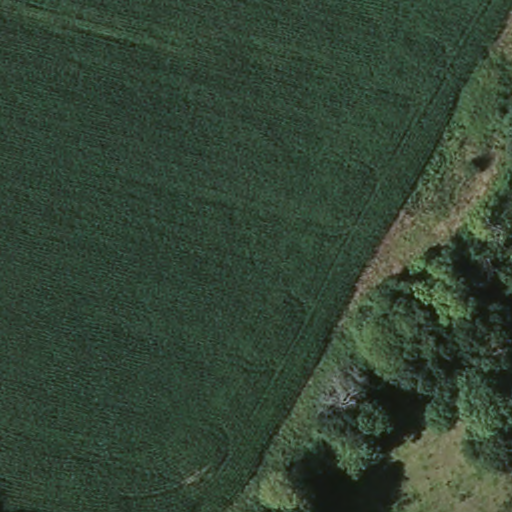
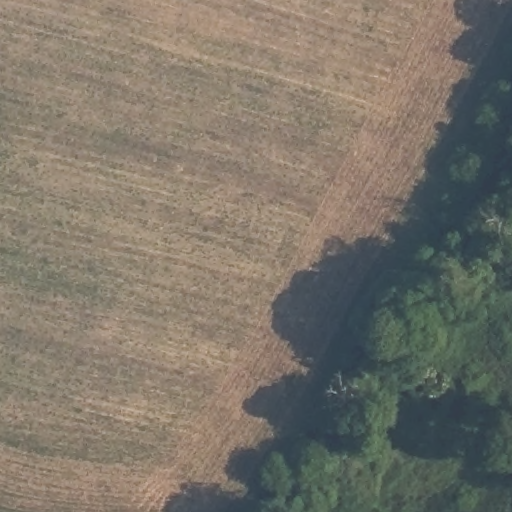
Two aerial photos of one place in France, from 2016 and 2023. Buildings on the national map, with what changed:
[]

